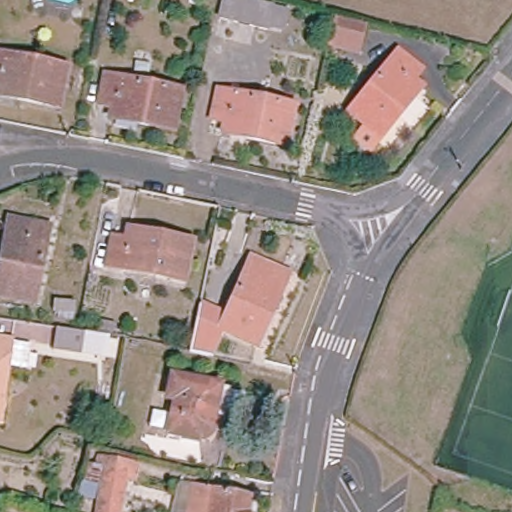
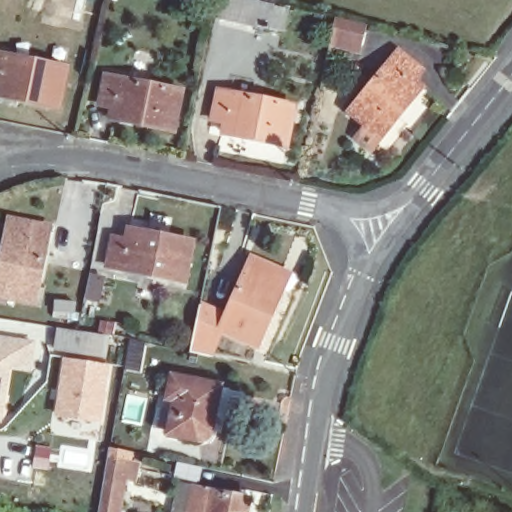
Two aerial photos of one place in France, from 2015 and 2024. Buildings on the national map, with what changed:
unchanged [(226,0),(258,0),(293,8),(292,35),(221,21),(226,0)]
unchanged [(335,16),(364,24),(358,47),(357,54),(329,47),(331,40),(335,16)]
unchanged [(0,91),(0,84),(1,81),(0,80),(0,49),(66,62),(57,102),(0,91)]
unchanged [(397,49),(421,67),(413,76),(422,84),(381,131),(350,107),(397,49)]
unchanged [(112,77),(188,91),(181,132),(119,122),(121,107),(107,104),(112,77)]
unchanged [(226,87),(300,102),(292,142),(231,129),(232,118),(220,116),(226,87)]
unchanged [(21,234),(22,222),(51,227),(37,301),(0,294),(0,272),(7,232),(21,234)]
unchanged [(115,238),(129,240),(130,230),(194,242),(186,281),(110,267),(115,238)]
unchanged [(255,255),(281,267),(275,279),(286,286),(260,340),(223,322),(210,348),(193,345),(200,303),(229,310),(255,255)]
unchanged [(102,353),(87,352),(85,354),(59,350),(62,328),(80,332),(90,333),(105,336),(102,353)]
unchanged [(3,421),(0,421),(0,337),(15,340),(3,421)]
new [(128,337),(147,341),(141,372),(122,368),(128,337)]
new [(62,357),(112,364),(102,426),(52,417),(62,357)]
unchanged [(178,377),(226,387),(215,442),(179,435),(185,400),(175,398),(178,377)]
unchanged [(102,452),(137,461),(134,482),(119,480),(114,512),(94,512),(102,452)]
unchanged [(254,512),(185,512),(189,490),(200,492),(256,502),(254,512)]

